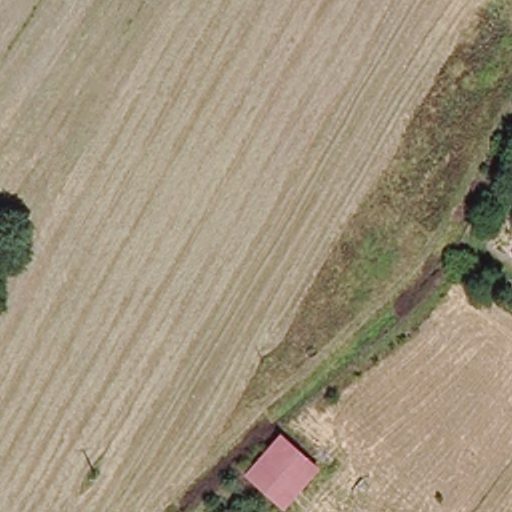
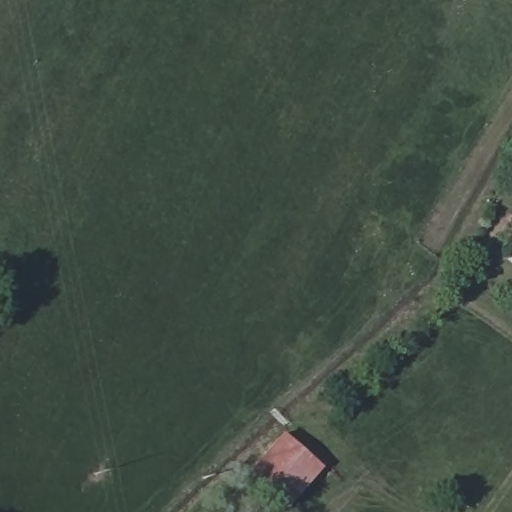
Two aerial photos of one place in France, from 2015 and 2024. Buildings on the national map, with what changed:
unchanged [(279,431),(320,466),(284,508),(243,473),(279,431)]

